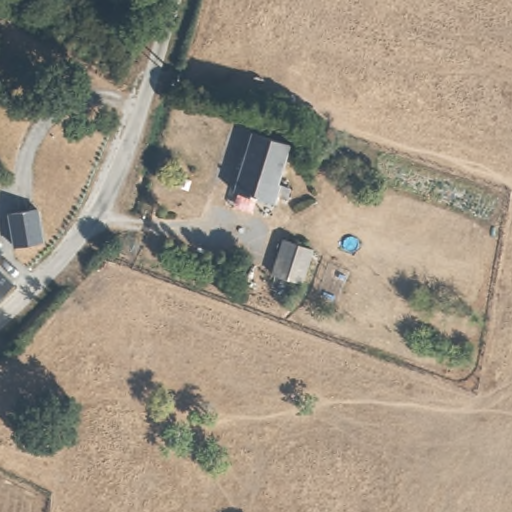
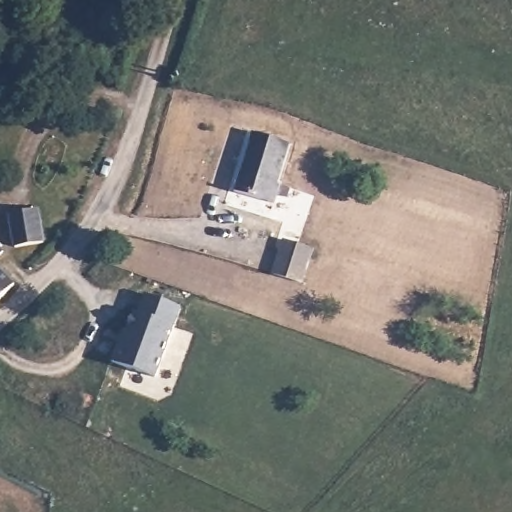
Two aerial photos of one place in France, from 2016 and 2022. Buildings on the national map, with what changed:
unchanged [(276,181),(288,185),(284,197),(273,193),(269,203),(231,190),(250,130),(288,142),(276,181)]
unchanged [(37,239),(14,247),(5,215),(27,208),(37,239)]
unchanged [(12,249),(1,260),(24,282),(9,296),(0,306),(0,237),(12,249)]
unchanged [(286,237),(305,243),(314,245),(303,279),(275,270),(286,237)]
new [(123,329),(128,331),(136,310),(140,312),(145,295),(181,307),(175,326),(155,377),(111,361),(123,329)]
demolished [(468,511),(468,512),(434,512),(436,503),(468,511)]

